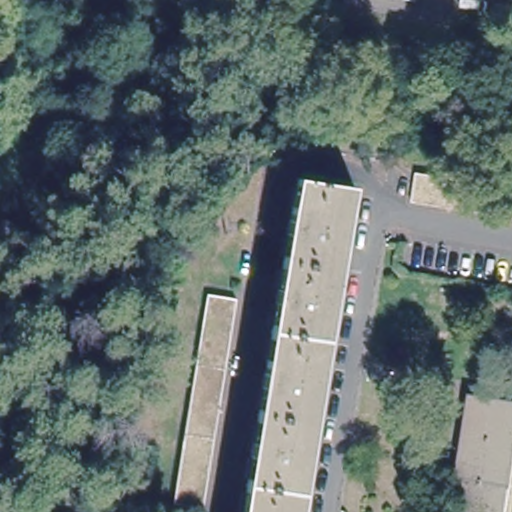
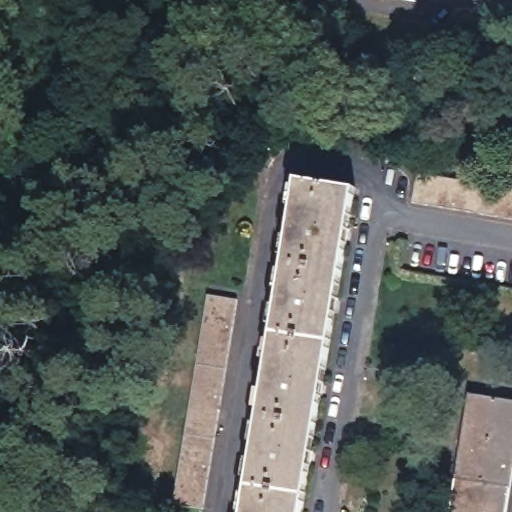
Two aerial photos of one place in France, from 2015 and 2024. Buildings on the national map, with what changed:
unchanged [(512,213),(422,199),(426,172),(512,184),(512,213)]
unchanged [(243,512),(298,183),(356,194),(304,512),(243,512)]
unchanged [(204,506),(175,501),(207,292),(238,298),(204,506)]
unchanged [(453,512),(470,392),(512,399),(512,480),(507,512),(453,512)]

